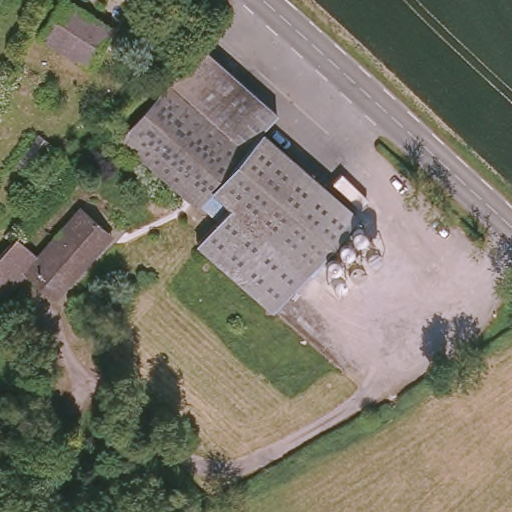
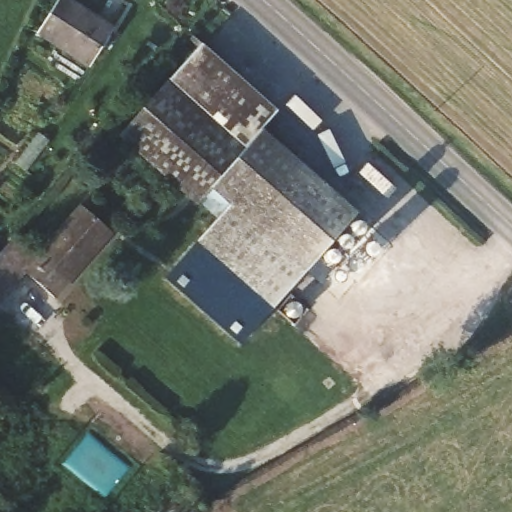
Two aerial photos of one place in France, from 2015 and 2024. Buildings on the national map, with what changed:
unchanged [(108,25),(87,64),(35,35),(54,0),(63,0),(108,25)]
unchanged [(274,121),(257,141),(350,226),(315,266),(265,314),(197,250),(228,218),(205,199),(192,214),(129,154),(120,146),(200,54),(274,121)]
unchanged [(55,297),(23,273),(0,299),(0,251),(14,234),(33,253),(76,207),(110,233),(55,297)]

